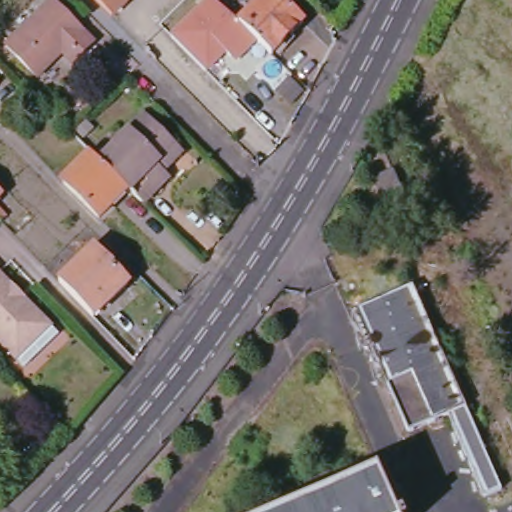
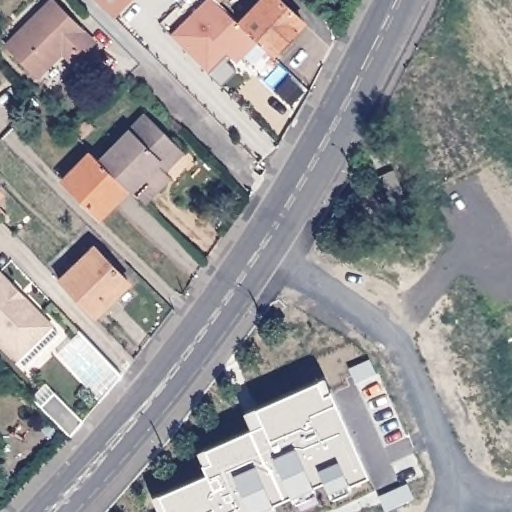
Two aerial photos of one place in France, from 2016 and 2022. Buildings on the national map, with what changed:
unchanged [(38,76),(7,45),(52,0),(53,0),(95,42),(83,55),(74,63),(63,52),(38,76)]
unchanged [(102,0),(134,0),(118,16),(102,0)]
unchanged [(257,41),(236,63),(226,54),(206,73),(170,36),(207,0),(211,0),(240,25),(257,41)]
unchanged [(272,56),(240,25),(263,0),(278,0),(303,24),(272,56)]
unchanged [(153,42),(163,53),(156,60),(152,55),(146,49),(153,42)]
unchanged [(172,145),(178,150),(158,170),(165,177),(139,204),(96,161),(141,115),(172,145)]
unchanged [(86,153),(110,176),(120,186),(104,203),(107,205),(95,218),(59,182),(86,153)]
demolished [(374,180),(394,171),(406,199),(386,208),(374,180)]
unchanged [(1,196),(0,196),(0,195),(1,196)]
unchanged [(95,247),(129,283),(94,317),(60,281),(95,247)]
demolished [(412,258),(437,247),(466,316),(439,327),(412,258)]
unchanged [(19,360),(13,354),(0,341),(0,274),(11,285),(9,288),(22,301),(24,299),(41,315),(52,327),(19,360)]
demolished [(413,286),(501,490),(484,498),(448,416),(409,433),(356,311),(413,286)]
demolished [(491,370),(465,378),(447,342),(476,333),(491,370)]
new [(369,482),(331,500),(324,486),(274,510),(275,512),(156,512),(151,500),(205,481),(198,456),(250,433),(244,417),(325,382),(369,482)]
demolished [(481,423),(512,412),(512,451),(497,456),(481,423)]
demolished [(378,474),(395,512),(289,512),(378,474)]

